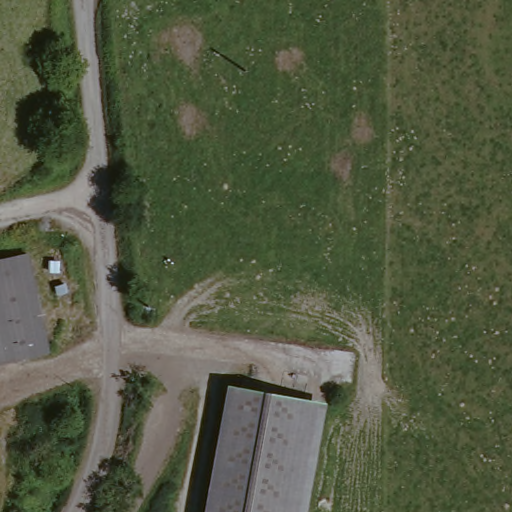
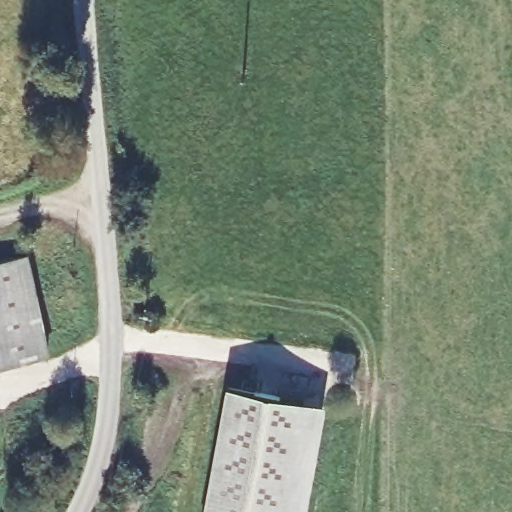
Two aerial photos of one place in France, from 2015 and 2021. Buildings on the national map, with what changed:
unchanged [(48,352),(0,361),(0,260),(28,254),(48,352)]
unchanged [(205,512),(230,384),(328,406),(309,512),(205,512)]

